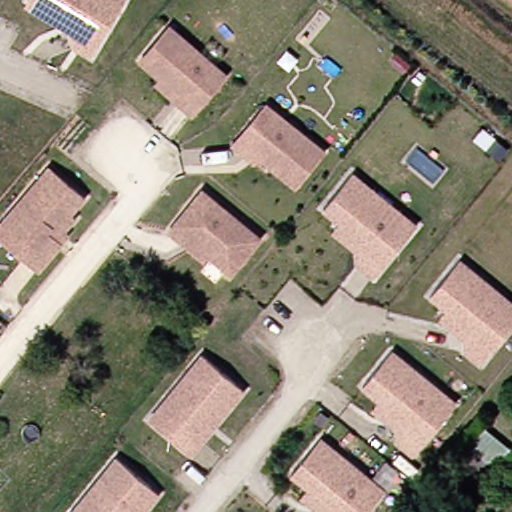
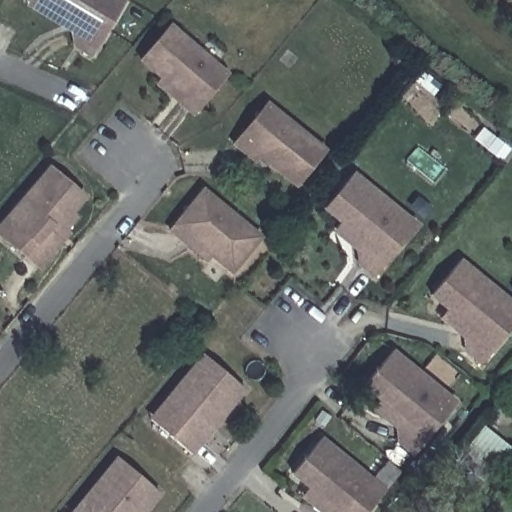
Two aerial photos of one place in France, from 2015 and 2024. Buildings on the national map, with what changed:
unchanged [(122,0),(94,52),(72,40),(71,30),(26,6),(30,0),(122,0)]
unchanged [(165,79),(144,61),(174,27),(230,74),(196,114),(182,102),(160,84),(165,79)]
unchanged [(249,152),(235,140),(270,101),(326,150),(297,183),(260,152),(256,158),(249,152)]
unchanged [(52,169),(84,194),(70,210),(75,215),(65,227),(69,231),(62,239),(39,266),(26,256),(0,233),(0,229),(8,220),(52,169)]
unchanged [(338,224),(341,219),(325,205),(355,170),(405,212),(417,222),(405,237),(374,273),(359,261),(358,247),(335,227),(338,224)]
unchanged [(173,230),(207,190),(262,237),(231,271),(211,254),(207,259),(187,242),(173,230)]
unchanged [(443,316),(447,312),(430,297),(460,262),(510,303),(512,305),(512,328),(510,330),(480,366),(465,353),(463,340),(440,320),(443,316)]
unchanged [(194,327),(201,317),(210,324),(202,335),(194,327)]
unchanged [(380,403),(384,398),(367,385),(396,350),(447,391),(460,402),(447,417),(417,453),(401,441),(400,427),(376,407),(380,403)]
unchanged [(161,410),(206,356),(240,385),(249,392),(235,408),(195,457),(171,437),(152,421),(161,410)]
unchanged [(510,446),(488,469),(465,448),(490,427),(510,446)]
unchanged [(308,490),(311,485),(295,471),(325,436),(375,477),(387,488),(375,503),(367,512),(327,512),(305,493),(308,490)]
unchanged [(120,459),(155,488),(162,495),(149,512),(148,512),(75,512),(120,459)]

